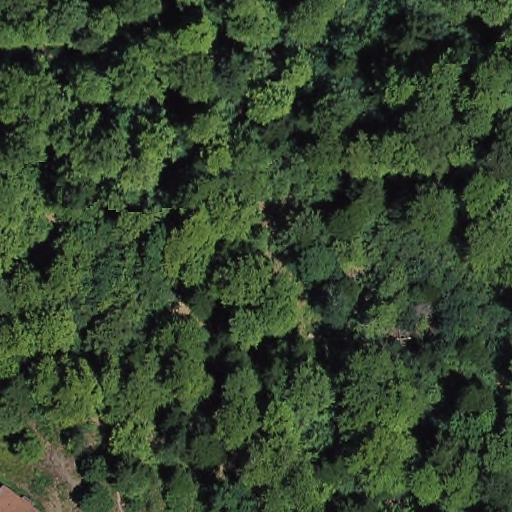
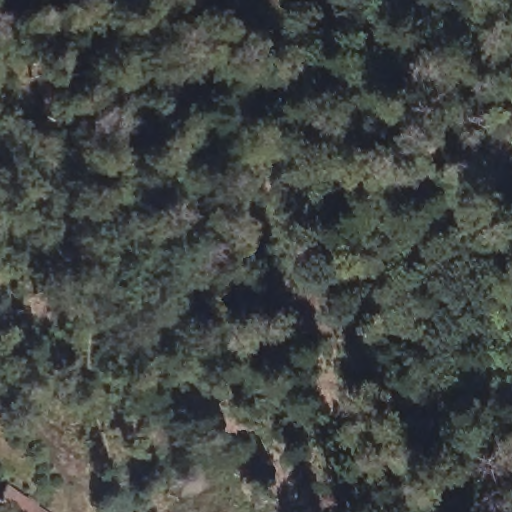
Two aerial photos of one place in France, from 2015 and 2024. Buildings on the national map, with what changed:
unchanged [(47,512),(0,512),(0,500),(9,485),(47,512)]

